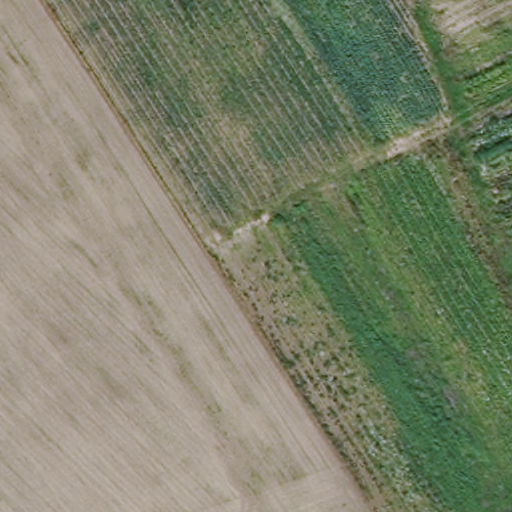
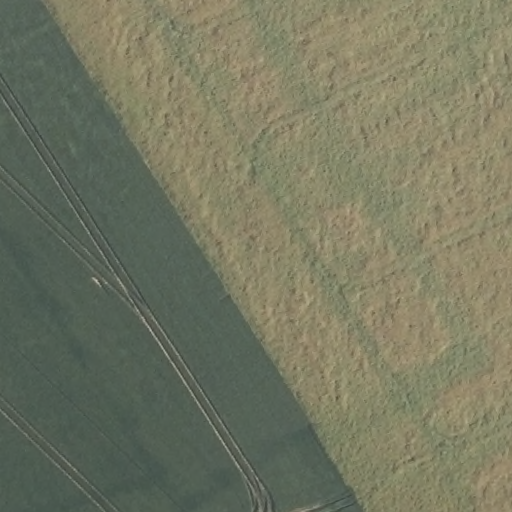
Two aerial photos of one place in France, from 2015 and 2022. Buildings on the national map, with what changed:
[]

